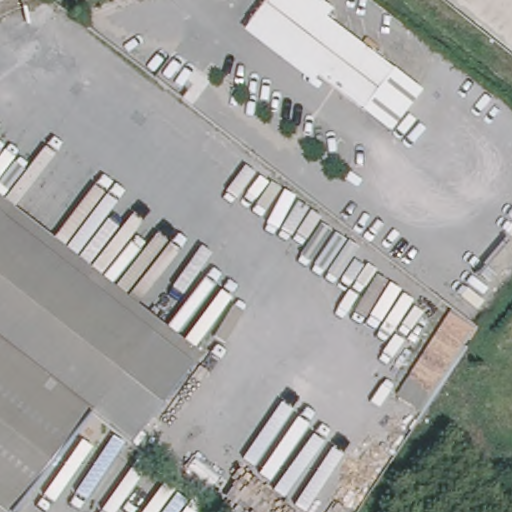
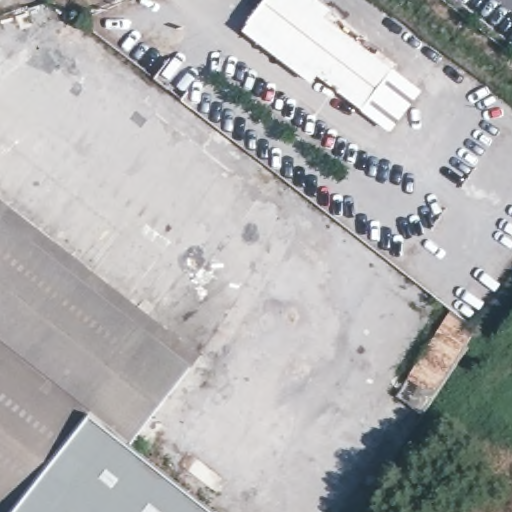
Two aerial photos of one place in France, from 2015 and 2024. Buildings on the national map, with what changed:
unchanged [(249,20),(264,0),(319,0),(331,9),(326,18),(392,70),(362,107),(318,73),(249,20)]
unchanged [(318,73),(311,83),(243,30),(249,20),(318,73)]
unchanged [(394,68),(422,89),(391,131),(362,107),(392,70),(394,68)]
unchanged [(0,197),(164,328),(95,411),(12,512),(6,512),(0,508),(0,197)]
unchanged [(475,329),(419,414),(394,397),(449,309),(475,329)]
unchanged [(168,322),(205,354),(136,441),(95,411),(164,328),(168,322)]
new [(95,411),(136,441),(131,447),(215,512),(12,512),(95,411)]

